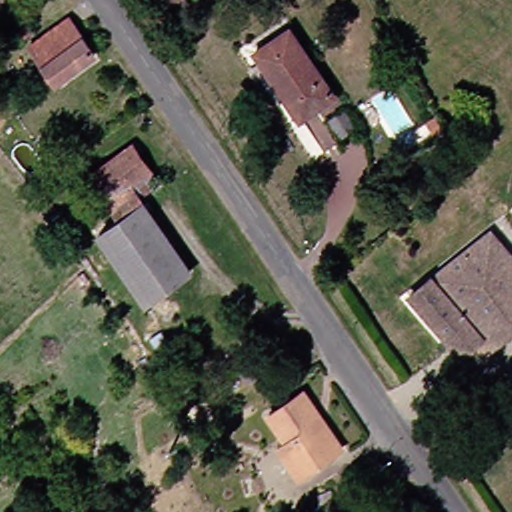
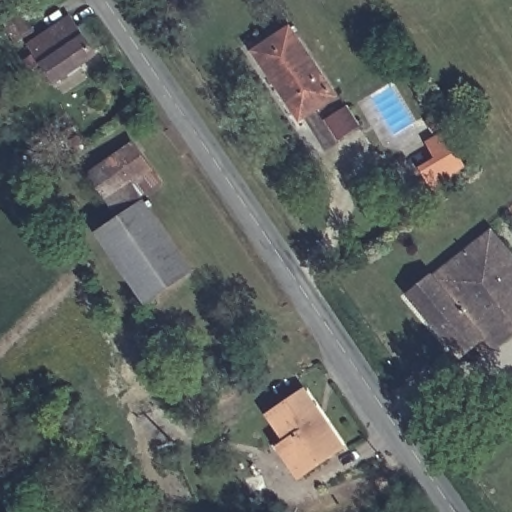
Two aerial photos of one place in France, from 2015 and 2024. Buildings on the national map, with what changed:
unchanged [(47,77),(21,45),(63,15),(88,48),(47,77)]
unchanged [(293,117),(247,55),(282,29),(328,90),(293,117)]
new [(435,157),(426,142),(442,132),(458,158),(461,156),(468,167),(441,182),(438,178),(429,184),(419,167),(435,157)]
unchanged [(96,204),(81,183),(125,151),(140,172),(96,204)]
unchanged [(108,220),(96,204),(140,172),(150,187),(131,202),(108,220)]
unchanged [(89,234),(108,220),(131,202),(181,272),(135,303),(89,234)]
unchanged [(467,323),(475,333),(455,350),(405,293),(482,228),(512,260),(512,299),(505,290),(467,323)]
unchanged [(475,333),(467,323),(505,290),(512,299),(512,322),(486,345),(475,333)]
unchanged [(280,442),(292,434),(272,403),(298,387),(306,399),(318,416),(335,442),(309,461),(298,468),(280,442)]

